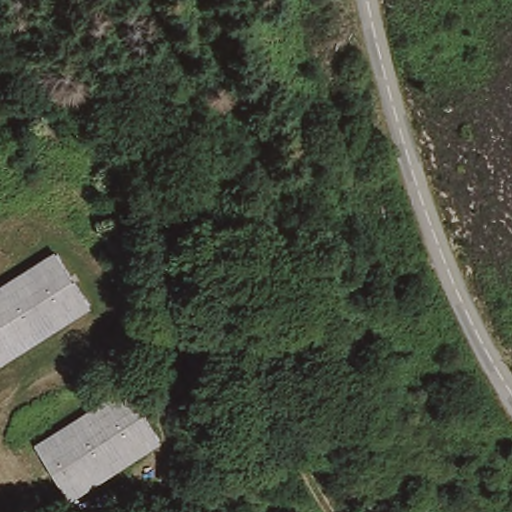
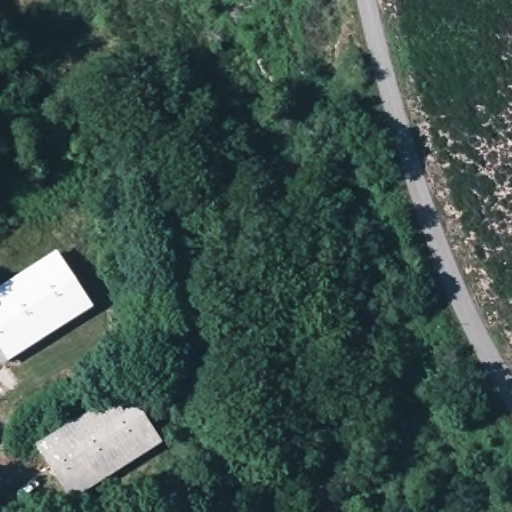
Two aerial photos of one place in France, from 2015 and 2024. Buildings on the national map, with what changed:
unchanged [(92,308),(0,367),(0,286),(53,251),(92,308)]
unchanged [(162,446),(69,504),(33,443),(122,386),(162,446)]

